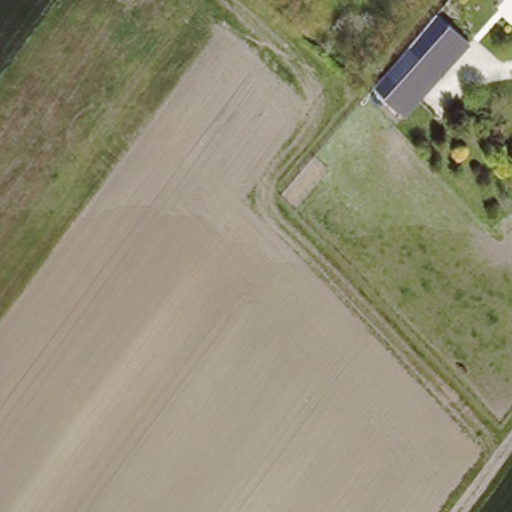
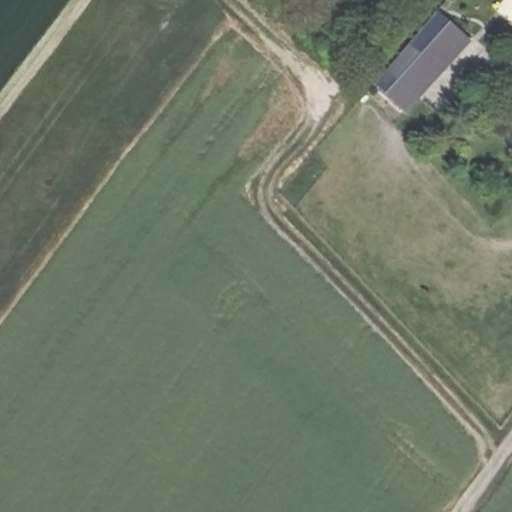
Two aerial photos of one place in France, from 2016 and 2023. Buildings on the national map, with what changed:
unchanged [(442,24),(462,44),(407,106),(387,89),(442,24)]

